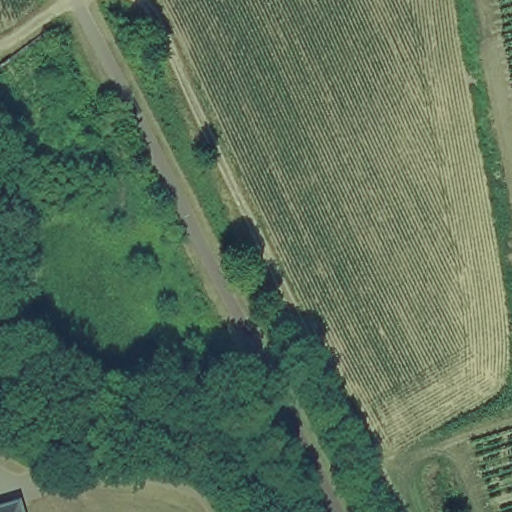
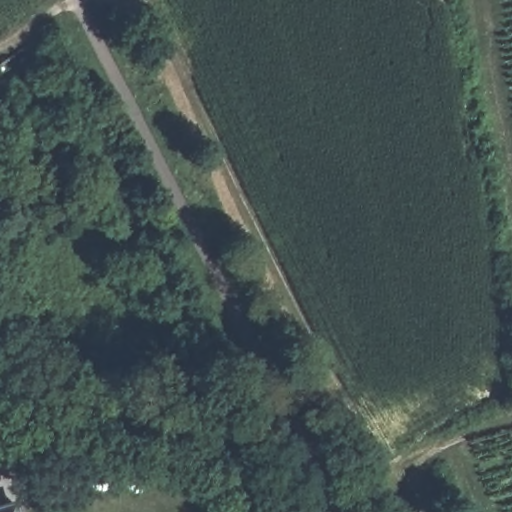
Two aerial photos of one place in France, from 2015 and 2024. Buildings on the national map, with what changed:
unchanged [(0,504),(25,496),(30,512),(0,512),(0,504)]

